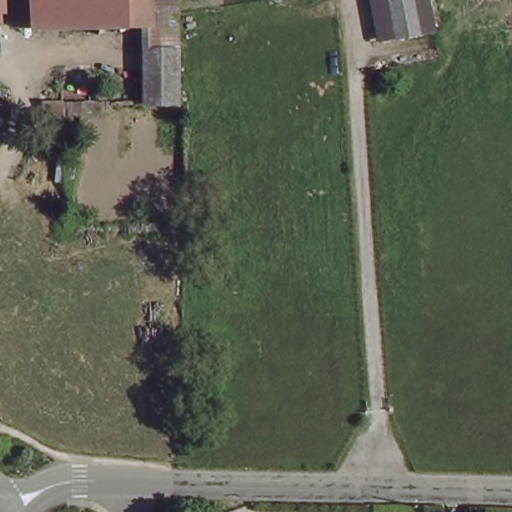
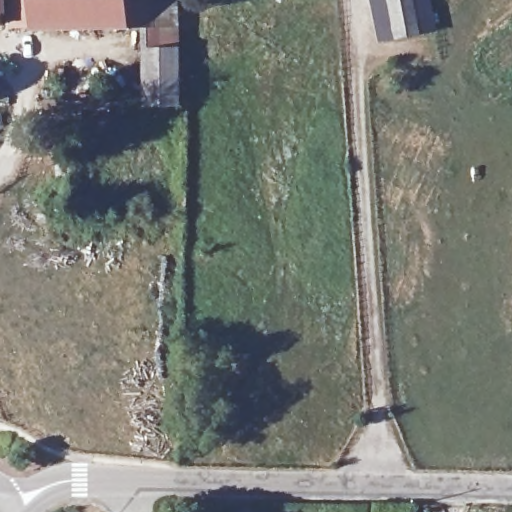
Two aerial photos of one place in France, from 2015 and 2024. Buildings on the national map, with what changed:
unchanged [(6,0),(146,0),(146,26),(5,27),(6,0)]
unchanged [(146,26),(146,0),(175,0),(175,24),(175,26),(146,26)]
unchanged [(436,34),(379,46),(369,0),(428,0),(436,34)]
unchanged [(146,26),(175,26),(176,106),(148,106),(146,26)]
unchanged [(64,118),(44,118),(44,107),(44,104),(64,103),(64,106),(64,118)]

